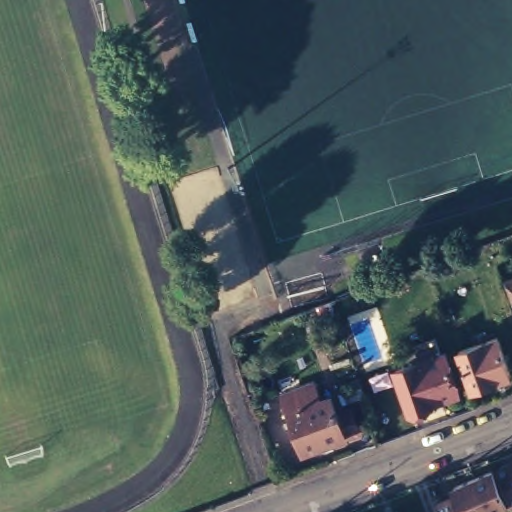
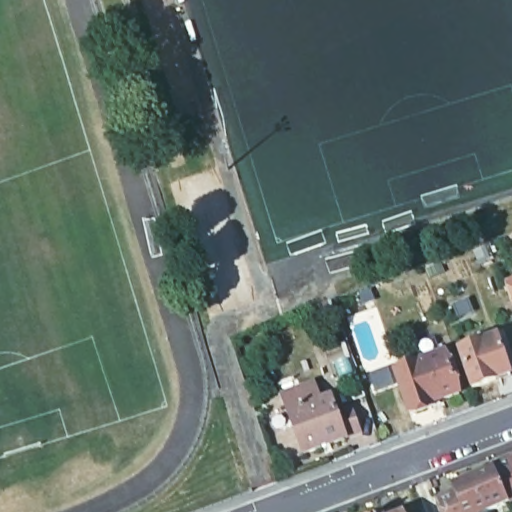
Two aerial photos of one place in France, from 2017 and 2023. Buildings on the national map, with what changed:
unchanged [(512,280),(512,300),(505,282),(512,280)]
unchanged [(226,325),(291,301),(297,314),(230,339),(226,325)]
unchanged [(479,383),(465,347),(503,332),(512,359),(512,372),(479,383)]
unchanged [(410,361),(405,345),(435,335),(440,350),(445,349),(460,389),(432,398),(434,401),(410,408),(396,366),(410,361)]
unchanged [(347,410),(355,433),(299,454),(284,413),(277,395),(310,383),(317,402),(327,398),(333,415),(347,410)]
unchanged [(512,460),(512,496),(500,465),(512,460)]
unchanged [(512,496),(512,501),(482,512),(449,512),(442,496),(462,488),(459,481),(500,465),(512,496)]
unchanged [(403,512),(384,512),(397,506),(400,511),(402,510),(403,512)]

